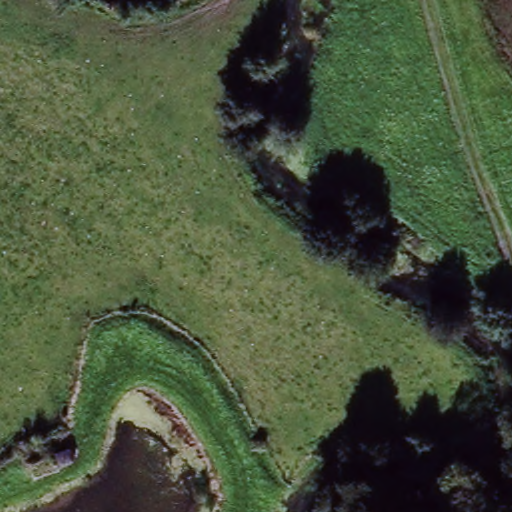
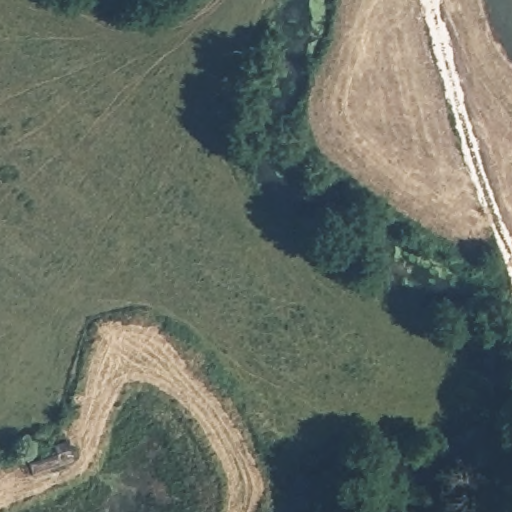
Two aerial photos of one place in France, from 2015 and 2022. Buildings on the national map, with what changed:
unchanged [(28,461),(69,447),(75,459),(33,474),(28,461)]

